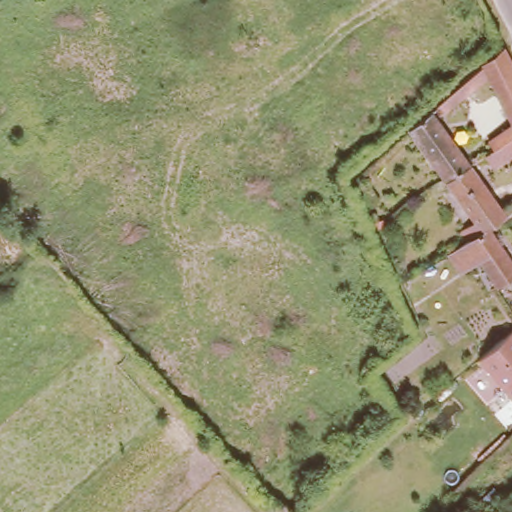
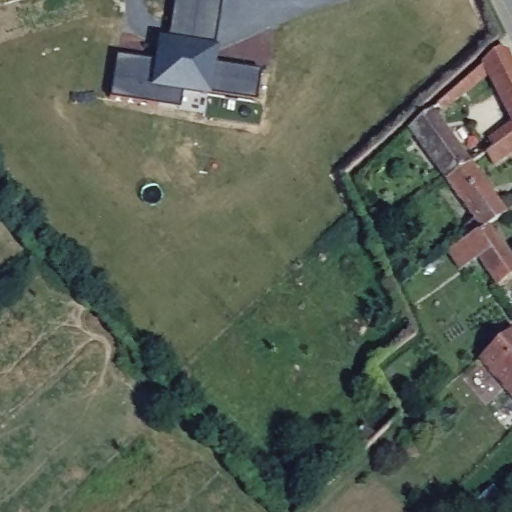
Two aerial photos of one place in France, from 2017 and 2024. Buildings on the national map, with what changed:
new [(118,57),(155,59),(160,37),(168,40),(176,0),(223,0),(217,47),(220,47),(217,65),(260,72),(257,100),(212,90),(210,98),(183,94),(180,108),(111,97),(118,57)]
unchanged [(481,143),(508,126),(480,76),(438,110),(433,103),(498,48),(512,74),(512,137),(487,152),(481,143)]
unchanged [(466,166),(440,181),(402,129),(425,110),(466,166)]
unchanged [(493,169),(483,155),(487,152),(512,137),(512,157),(493,169)]
unchanged [(452,228),(468,219),(440,181),(466,166),(501,212),(482,225),(458,240),(452,228)]
unchanged [(506,197),(512,193),(512,206),(506,197)]
unchanged [(511,270),(490,283),(458,240),(482,225),(511,270)]
unchanged [(480,359),(512,335),(512,396),(480,359)]

